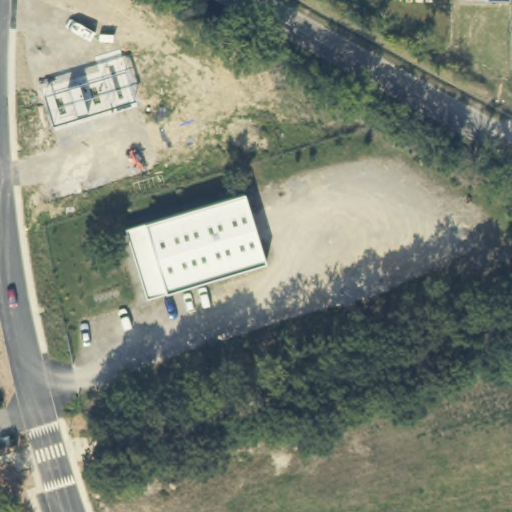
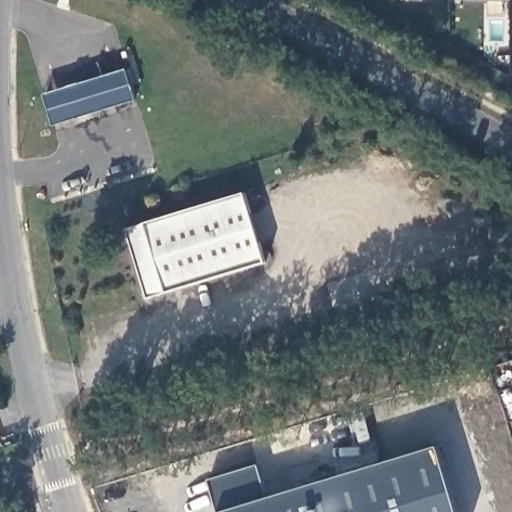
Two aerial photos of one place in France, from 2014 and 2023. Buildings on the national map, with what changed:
unchanged [(487,1),(487,0),(508,0),(507,1),(487,1)]
new [(67,87),(79,84),(79,85),(125,71),(134,100),(88,115),(77,118),(53,125),(44,96),(68,88),(67,87)]
unchanged [(244,192),(266,265),(147,301),(125,229),(244,192)]
new [(268,497),(438,446),(459,512),(217,512),(207,480),(258,463),(268,497)]

